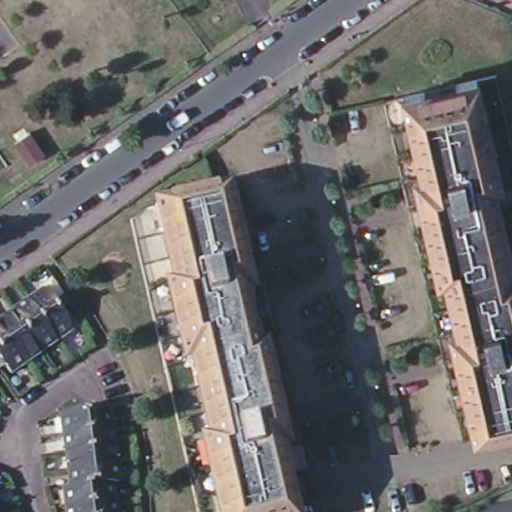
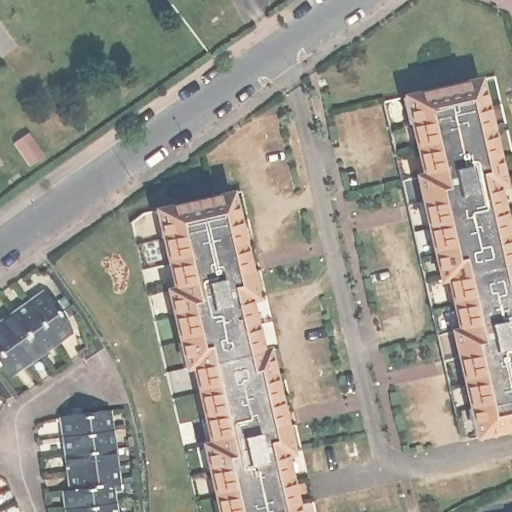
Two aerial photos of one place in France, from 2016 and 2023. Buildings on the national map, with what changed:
unchanged [(470,436),(447,321),(455,321),(445,271),(435,272),(412,169),(420,167),(405,92),(477,75),(502,186),(497,189),(512,261),(512,430),(470,436)]
unchanged [(250,303),(259,350),(269,347),(290,455),(280,456),(292,512),(210,512),(197,448),(204,445),(189,365),(179,366),(165,286),(171,284),(158,207),(228,190),(248,270),(250,303)]
unchanged [(5,373),(0,366),(0,315),(36,289),(65,330),(5,373)]
unchanged [(110,492),(112,512),(63,512),(61,498),(68,497),(60,425),(65,423),(66,420),(82,418),(83,421),(109,418),(119,490),(110,492)]

